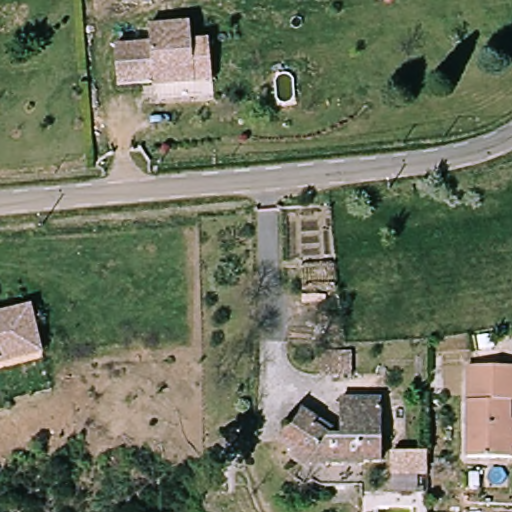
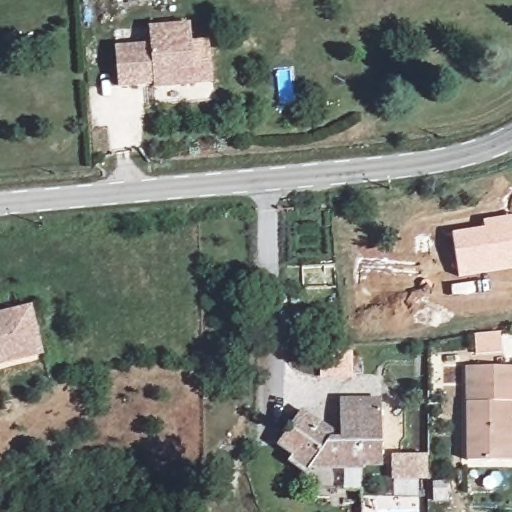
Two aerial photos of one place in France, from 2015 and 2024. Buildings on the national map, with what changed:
unchanged [(214,85),(197,87),(155,90),(155,87),(120,89),(117,51),(152,48),(151,30),(193,27),(193,44),(211,43),(214,85)]
new [(512,215),(512,269),(460,277),(452,232),(485,227),(484,220),(512,215)]
unchanged [(0,313),(28,301),(33,315),(38,326),(43,339),(46,348),(37,352),(3,365),(0,366),(0,313)]
new [(502,332),(503,354),(476,355),(474,334),(502,332)]
unchanged [(353,377),(321,379),(319,353),(350,350),(353,377)]
unchanged [(508,464),(470,460),(471,448),(478,365),(512,368),(512,465),(508,464)]
unchanged [(381,460),(315,467),(308,477),(289,467),(291,461),(276,453),(298,414),(338,439),(341,432),(339,401),(380,397),(381,460)]
unchanged [(394,473),(394,451),(404,451),(426,451),(426,453),(431,452),(431,474),(404,473),(394,473)]

